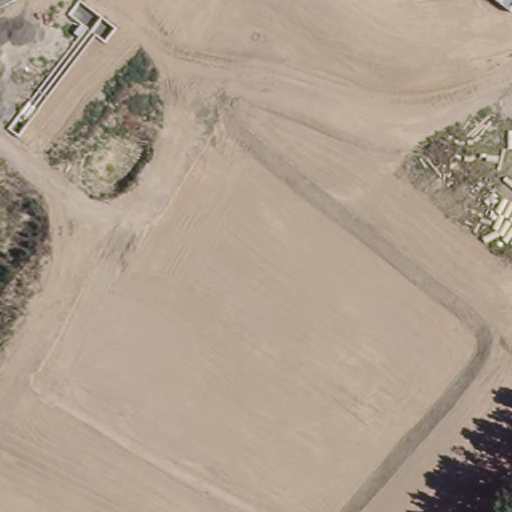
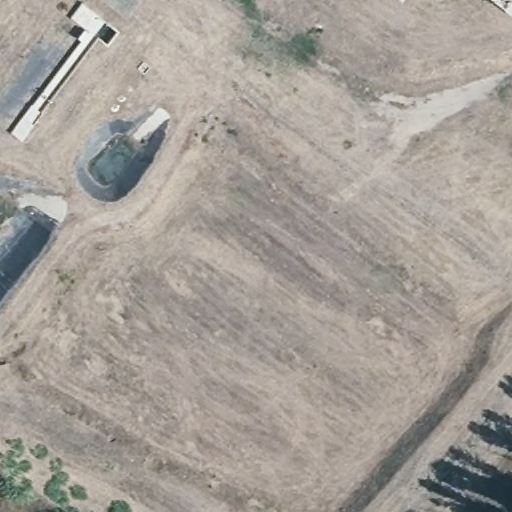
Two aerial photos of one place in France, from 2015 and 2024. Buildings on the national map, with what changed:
unchanged [(512,15),(492,0),(512,0),(512,15)]

